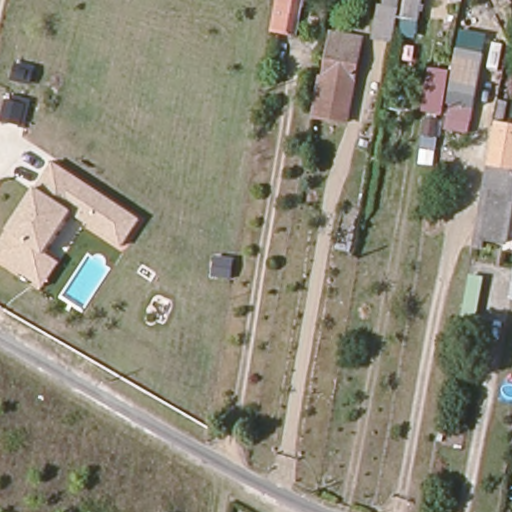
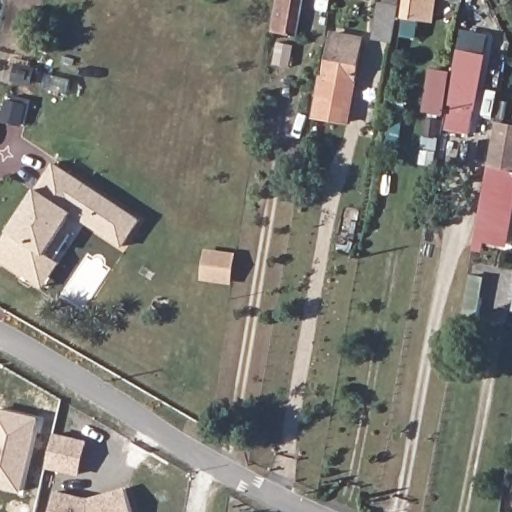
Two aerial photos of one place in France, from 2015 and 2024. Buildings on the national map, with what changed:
unchanged [(304,0),(300,32),(283,30),(287,2),(281,1),(281,0),(304,0)]
unchanged [(387,17),(390,0),(407,0),(403,19),(387,17)]
unchanged [(350,124),(314,117),(323,38),(366,44),(350,124)]
unchanged [(450,60),(471,63),(463,106),(442,102),(450,60)]
unchanged [(475,239),(497,121),(512,123),(512,208),(505,247),(475,239)]
unchanged [(72,214),(46,255),(57,263),(44,287),(0,261),(0,246),(53,164),(140,221),(123,248),(72,214)]
new [(233,254),(229,282),(200,277),(204,250),(233,254)]
new [(468,275),(485,277),(477,319),(462,317),(468,275)]
new [(510,298),(512,289),(512,299),(510,298)]
new [(0,408),(39,417),(21,493),(0,488),(0,408)]
new [(47,469),(57,432),(88,441),(81,476),(47,469)]
new [(126,487),(134,512),(51,512),(56,490),(90,498),(126,487)]

